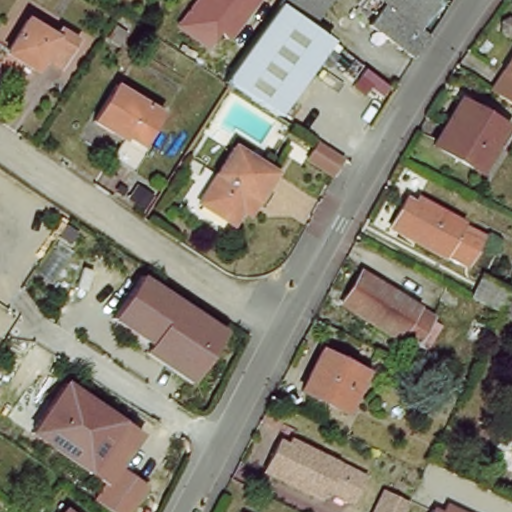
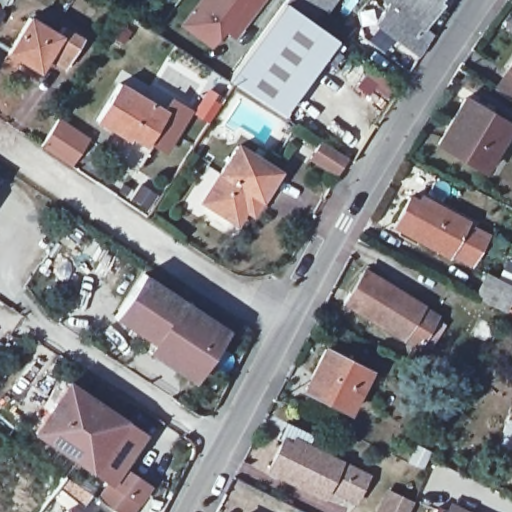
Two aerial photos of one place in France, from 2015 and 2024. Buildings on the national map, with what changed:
unchanged [(226,33),(213,51),(180,26),(200,0),(266,0),(237,40),(226,33)]
unchanged [(341,40),(286,115),(262,99),(239,84),(234,81),(290,3),(292,0),(338,0),(320,25),(341,40)]
unchanged [(397,3),(394,0),(441,0),(440,1),(446,5),(429,28),(439,36),(425,58),(381,25),(397,3)]
unchanged [(505,20),(512,16),(512,36),(504,31),(505,20)]
unchanged [(35,19),(63,36),(68,27),(87,39),(70,68),(52,58),(45,70),(15,52),(35,19)]
unchanged [(512,99),(497,90),(512,67),(512,99)]
unchanged [(167,111),(146,146),(131,136),(129,140),(97,121),(120,83),(167,111)]
unchanged [(465,99),(512,125),(486,171),(440,145),(465,99)]
new [(87,141),(72,166),(42,146),(58,121),(87,141)]
unchanged [(336,175),(311,159),(322,141),(348,159),(336,175)]
unchanged [(246,209),(237,223),(203,202),(238,146),(279,172),(262,199),(253,214),(246,209)]
unchanged [(408,202),(417,207),(422,197),(467,221),(466,224),(487,236),(472,264),(450,253),(449,256),(395,227),(408,202)]
unchanged [(427,339),(417,333),(415,337),(399,327),(398,329),(349,299),(340,294),(346,285),(360,261),(418,296),(417,297),(433,307),(432,309),(441,315),(427,339)]
unchanged [(488,274),(512,286),(512,300),(506,312),(476,298),(488,274)]
unchanged [(188,366),(155,344),(117,319),(145,276),(216,323),(188,366)]
unchanged [(229,331),(195,383),(150,352),(155,344),(188,366),(216,323),(229,331)]
unchanged [(326,349),(370,372),(350,413),(305,390),(326,349)]
unchanged [(102,478),(55,446),(35,433),(69,383),(125,422),(99,461),(110,468),(102,478)]
unchanged [(369,472),(356,497),(330,483),(324,493),(270,466),(282,441),(291,445),(296,435),(369,472)]
unchanged [(512,438),(512,448),(509,447),(512,438)]
unchanged [(410,512),(377,512),(370,509),(381,487),(414,503),(410,512)]
unchanged [(447,506),(463,512),(444,512),(447,506)]
unchanged [(72,512),(67,512),(69,510),(72,512)]
unchanged [(437,510),(441,512),(436,512),(437,510)]

